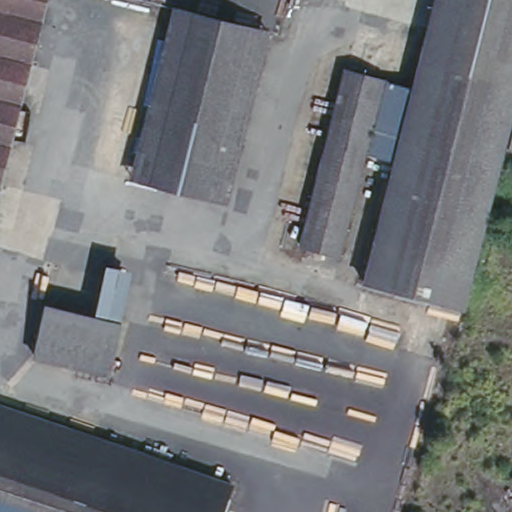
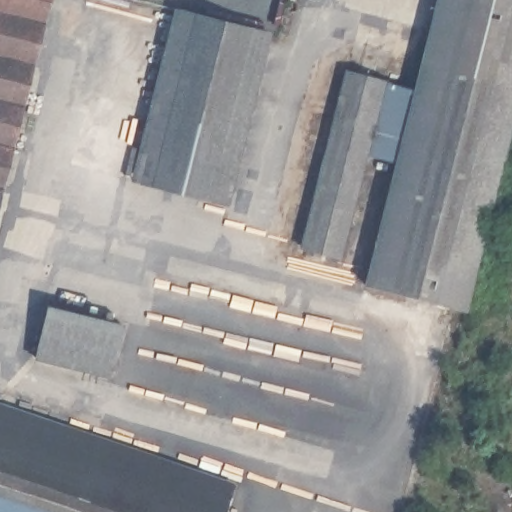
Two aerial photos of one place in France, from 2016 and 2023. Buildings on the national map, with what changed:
unchanged [(47,0),(0,184),(0,0),(47,0)]
unchanged [(361,284),(392,161),(364,154),(337,252),(299,241),(346,69),(411,87),(433,0),(512,0),(512,99),(457,308),(361,284)]
unchanged [(274,26),(225,207),(122,182),(172,4),(274,26)]
unchanged [(512,114),(512,136),(505,134),(512,114)]
unchanged [(95,318),(109,269),(133,273),(107,374),(33,355),(46,306),(95,318)]
unchanged [(229,482),(221,512),(0,512),(0,408),(229,482)]

